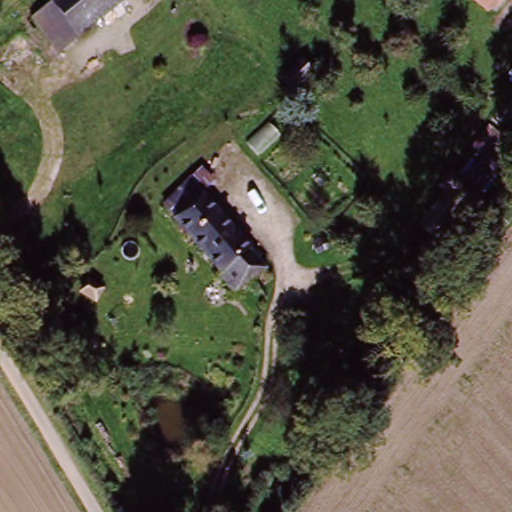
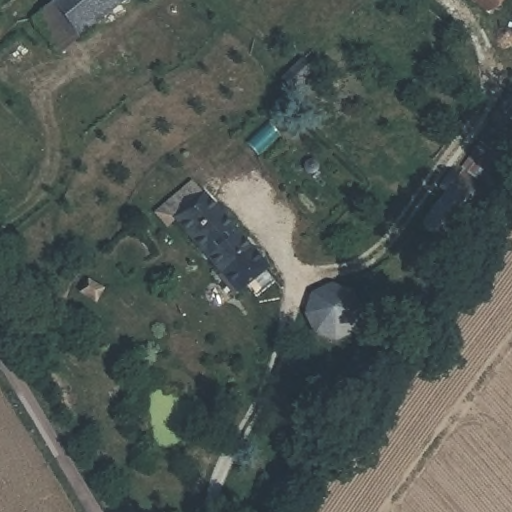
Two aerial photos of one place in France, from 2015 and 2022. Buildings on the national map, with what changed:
unchanged [(54,0),(119,0),(79,35),(52,2),(54,0)]
unchanged [(482,10),(471,0),(490,0),(482,10)]
unchanged [(79,35),(55,54),(29,23),(52,2),(79,35)]
demolished [(499,115),(512,102),(512,126),(499,115)]
unchanged [(443,235),(422,220),(446,192),(439,185),(448,172),(475,196),(443,235)]
unchanged [(243,310),(225,290),(230,285),(187,232),(175,219),(200,197),(212,213),(272,283),(243,310)]
new [(332,284),(352,290),(362,312),(355,332),(335,342),(315,335),(304,314),(311,293),(332,284)]

